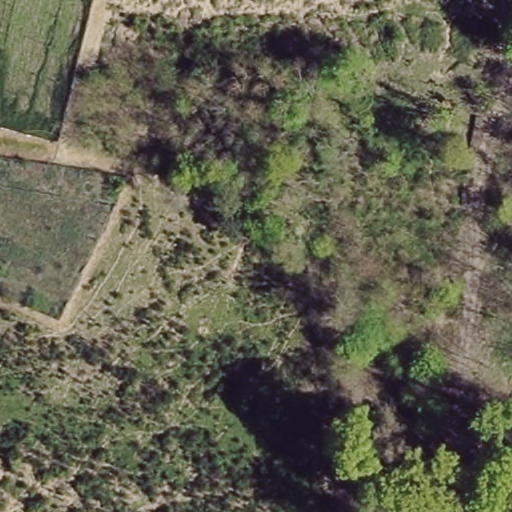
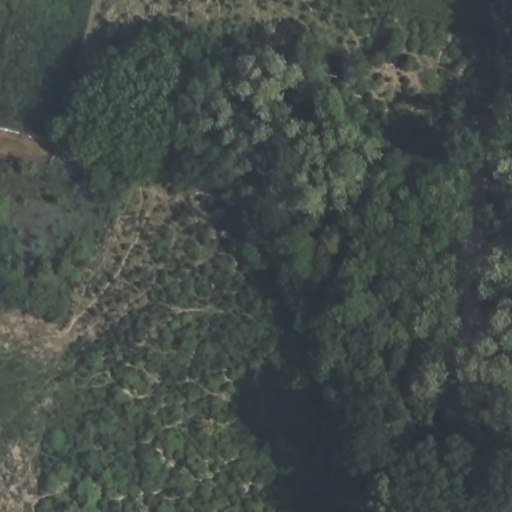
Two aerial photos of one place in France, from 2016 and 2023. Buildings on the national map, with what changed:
[]

